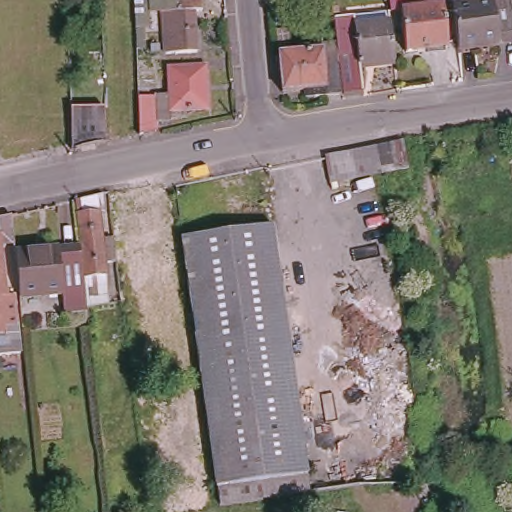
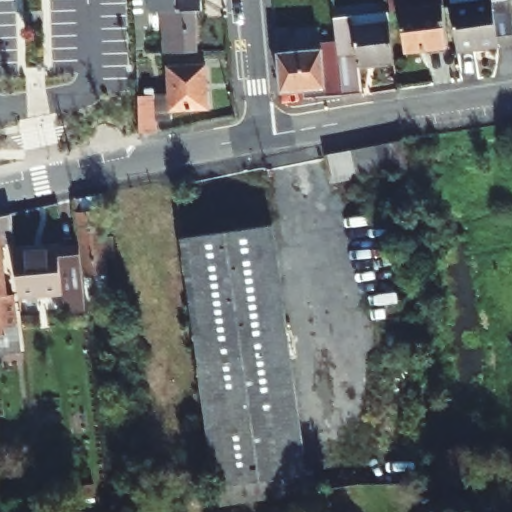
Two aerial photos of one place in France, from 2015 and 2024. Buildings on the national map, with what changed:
unchanged [(194,9),(195,50),(165,52),(162,10),(148,10),(148,19),(135,20),(135,10),(134,0),(200,0),(200,9),(194,9)]
unchanged [(408,0),(427,0),(428,11),(445,10),(447,51),(406,55),(402,13),(390,14),(389,1),(408,0)]
unchanged [(511,6),(512,13),(512,44),(460,51),(453,14),(511,6)]
unchanged [(361,86),(342,88),(340,58),(335,12),(356,10),(357,18),(391,15),(395,53),(359,56),(361,86)]
unchanged [(305,92),(305,84),(282,86),(278,46),(323,43),(325,59),(340,58),(342,88),(305,92)]
unchanged [(175,90),(175,62),(210,61),(212,101),(175,104),(175,113),(161,114),(162,124),(145,128),(144,93),(175,90)]
demolished [(73,150),(72,107),(106,106),(107,141),(73,150)]
unchanged [(327,158),(342,155),(355,152),(367,150),(382,147),(393,145),(397,173),(387,175),(372,177),(360,179),(345,182),(330,184),(320,186),(315,160),(327,158)]
unchanged [(80,240),(75,193),(102,187),(104,199),(100,199),(103,232),(115,230),(116,243),(105,244),(108,283),(85,286),(80,240)]
unchanged [(12,209),(16,247),(17,266),(10,267),(6,237),(0,237),(0,211),(12,209)]
unchanged [(307,483),(217,495),(183,246),(275,235),(307,483)]
unchanged [(85,286),(87,299),(87,307),(66,309),(64,288),(60,243),(80,240),(85,286)]
unchanged [(64,288),(20,293),(17,266),(16,247),(60,243),(64,288)]
unchanged [(2,291),(14,290),(20,336),(0,338),(0,261),(2,291)]

